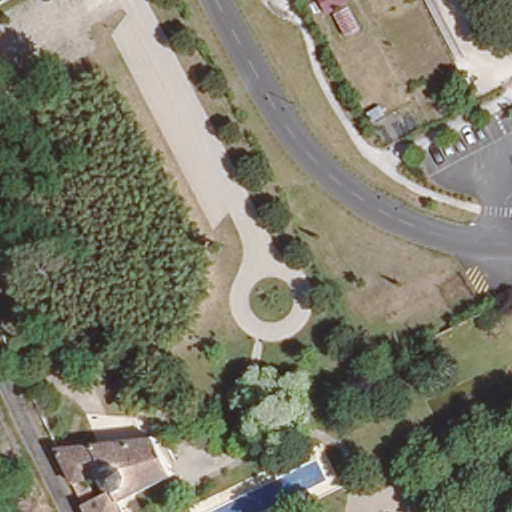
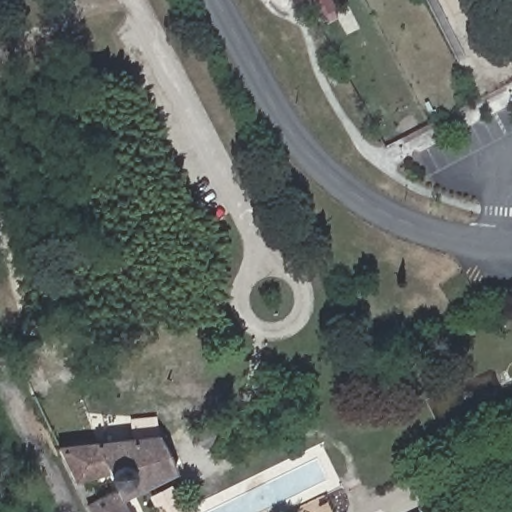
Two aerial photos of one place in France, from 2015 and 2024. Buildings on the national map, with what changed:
unchanged [(336,9),(331,0),(351,0),(351,1),(336,9)]
unchanged [(336,20),(331,23),(327,16),(332,13),(336,20)]
unchanged [(117,485),(107,467),(73,472),(59,443),(145,428),(156,425),(176,466),(121,493),(131,512),(92,512),(87,501),(117,485)]
unchanged [(203,428),(204,428),(205,428),(206,429),(207,430),(208,431),(209,431),(210,432),(210,433),(210,434),(210,435),(210,436),(210,437),(210,438),(210,439),(209,440),(209,441),(207,442),(206,443),(205,443),(204,443),(204,444),(202,444),(201,444),(200,444),(200,443),(199,443),(197,442),(196,441),(195,440),(195,439),(195,438),(195,437),(194,436),(194,435),(195,434),(195,433),(195,432),(196,431),(196,430),(197,429),(198,429),(199,428),(200,428),(201,428),(202,428),(203,428)]

